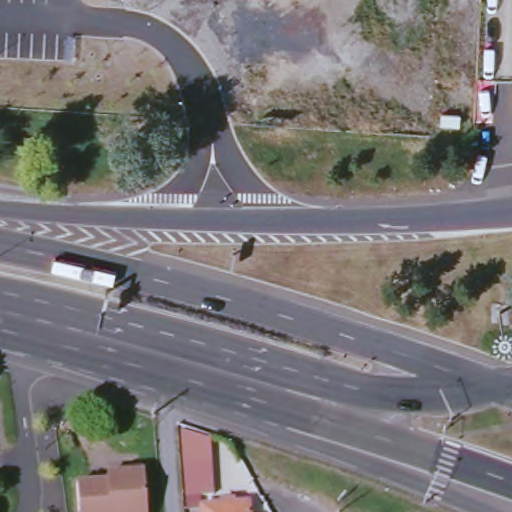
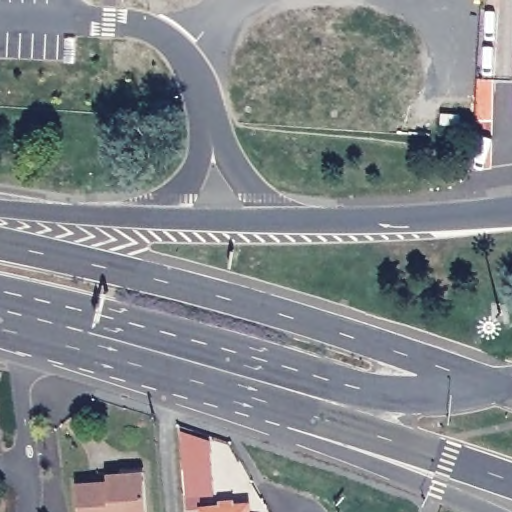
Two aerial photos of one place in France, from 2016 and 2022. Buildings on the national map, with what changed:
unchanged [(185,497),(180,429),(210,440),(213,490),(185,497)]
unchanged [(120,480),(118,467),(140,465),(144,512),(78,512),(75,485),(120,480)]
unchanged [(200,507),(217,506),(216,502),(233,501),(233,505),(246,504),(247,512),(200,512),(200,507)]

